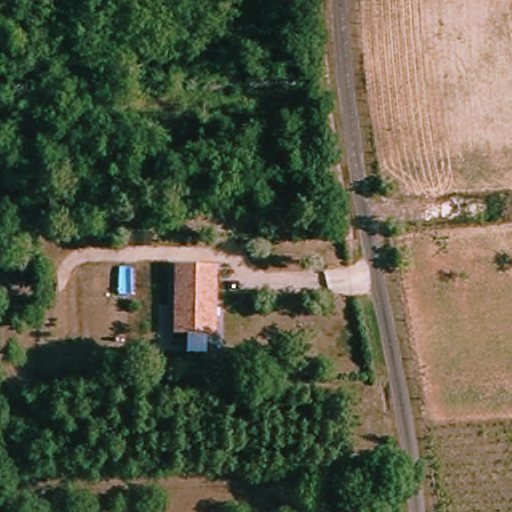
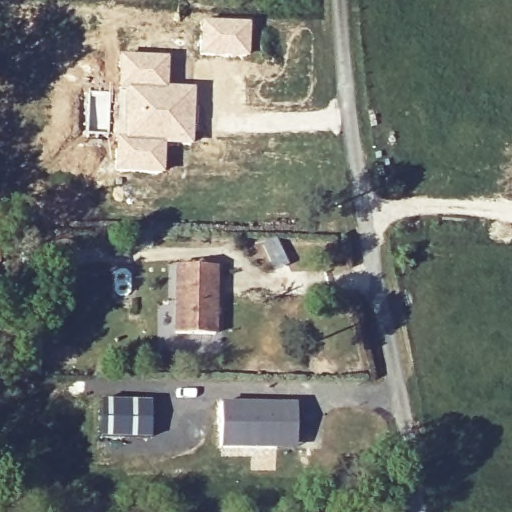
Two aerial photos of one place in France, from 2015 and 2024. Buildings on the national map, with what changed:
new [(199,19),(251,20),(249,59),(198,56),(199,19)]
new [(114,122),(117,122),(118,54),(169,56),(168,86),(194,87),(193,146),(166,145),(164,145),(164,142),(113,136),(114,122)]
new [(113,136),(164,142),(164,145),(166,145),(165,174),(113,174),(113,136)]
new [(276,236),(288,264),(272,271),(258,242),(276,236)]
unchanged [(221,266),(221,335),(181,333),(181,266),(221,266)]
new [(103,399),(152,399),(152,437),(102,438),(103,399)]
new [(296,402),(296,448),(220,449),(220,402),(296,402)]

